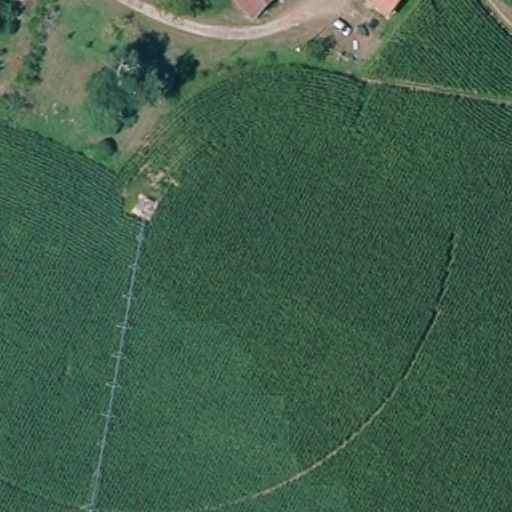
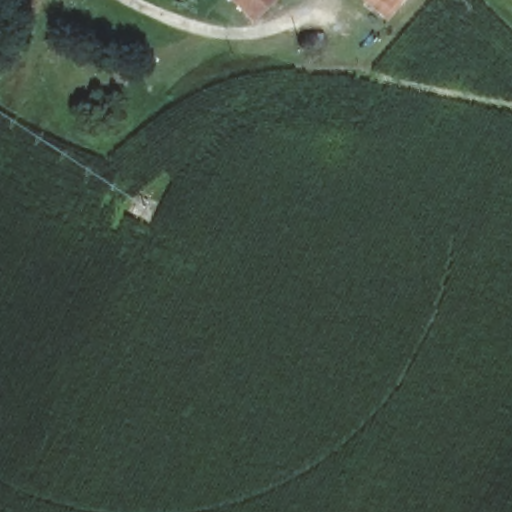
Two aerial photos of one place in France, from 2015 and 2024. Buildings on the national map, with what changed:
unchanged [(232,0),(267,0),(254,17),(232,0)]
unchanged [(357,0),(403,0),(384,23),(357,0)]

